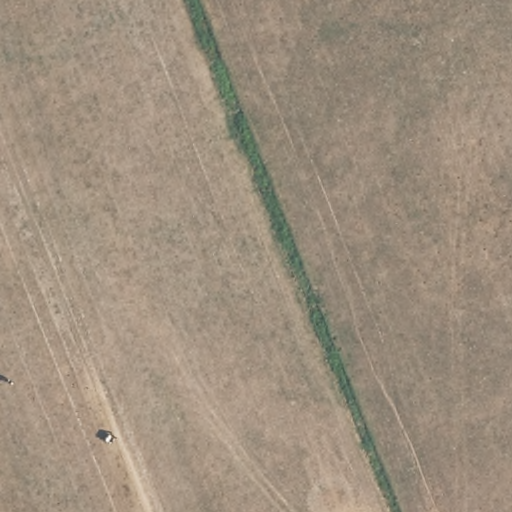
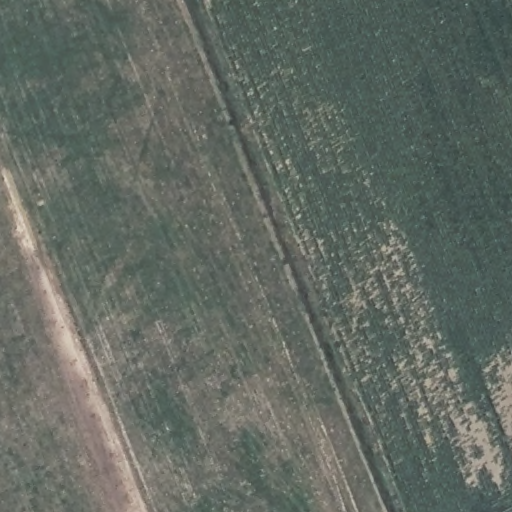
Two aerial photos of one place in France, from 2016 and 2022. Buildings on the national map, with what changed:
[]

